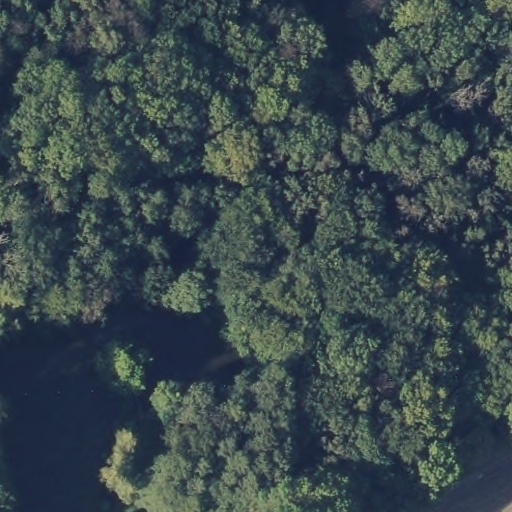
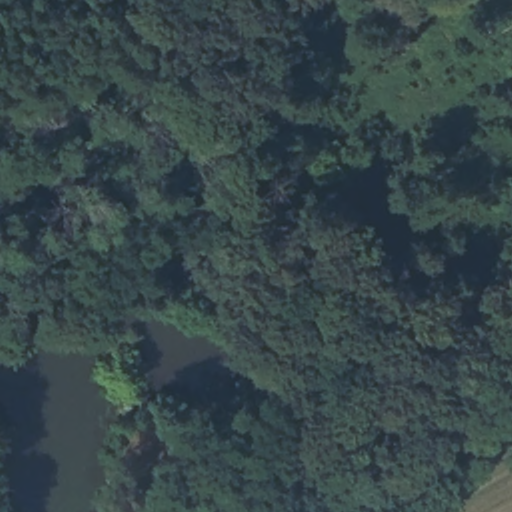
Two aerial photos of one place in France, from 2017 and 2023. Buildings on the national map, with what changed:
unchanged [(193,435),(205,462),(172,470),(164,443),(193,435)]

